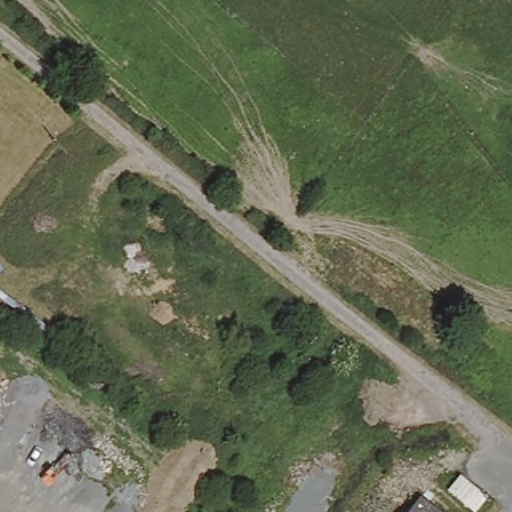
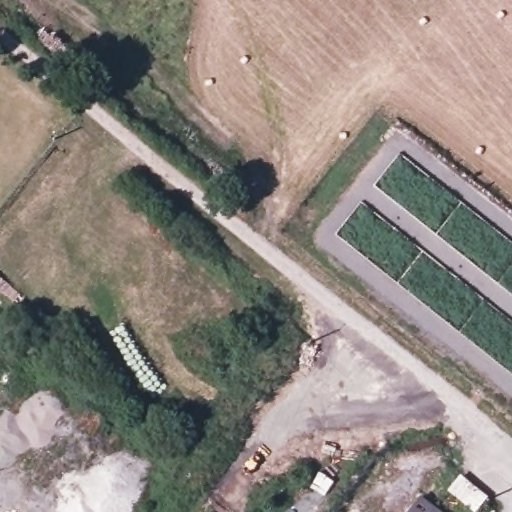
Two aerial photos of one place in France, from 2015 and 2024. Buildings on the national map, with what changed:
unchanged [(489,492),(477,508),(449,486),(461,470),(489,492)]
unchanged [(446,512),(407,512),(422,493),(446,512)]

